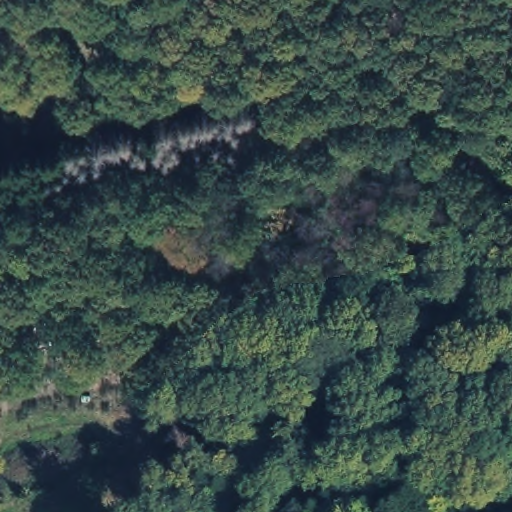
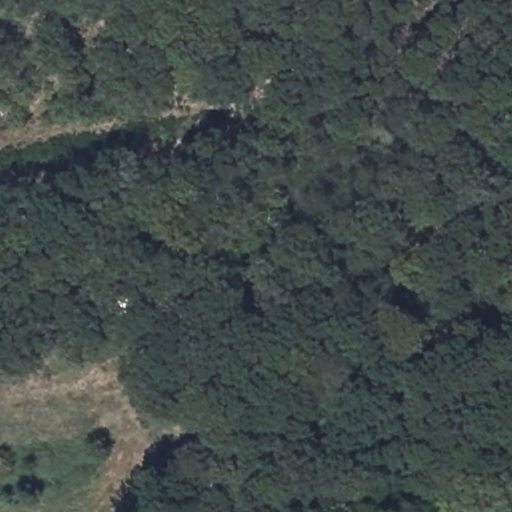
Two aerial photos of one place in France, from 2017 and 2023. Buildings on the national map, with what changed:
unchanged [(40,5),(39,0),(63,0),(40,5)]

